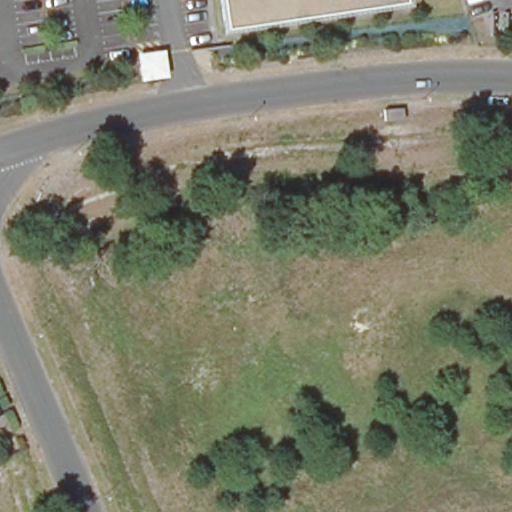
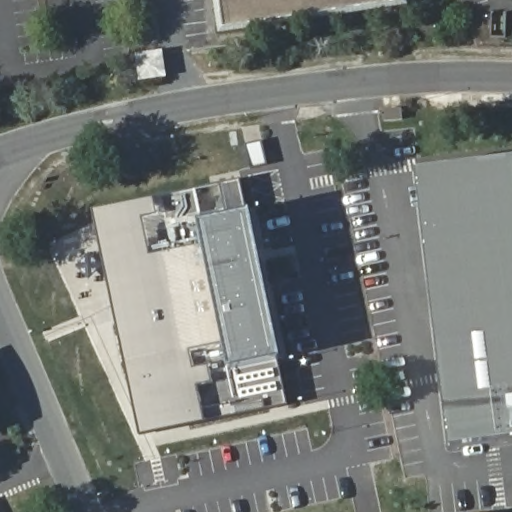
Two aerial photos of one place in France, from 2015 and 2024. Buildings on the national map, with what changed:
unchanged [(220,27),(216,0),(399,0),(400,1),(220,27)]
unchanged [(166,49),(170,78),(141,83),(137,54),(166,49)]
new [(419,170),(512,158),(512,438),(453,445),(419,170)]
new [(220,183),(242,178),(249,211),(254,210),(285,358),(280,359),(290,404),(207,422),(141,436),(93,210),(156,197),(197,188),(203,221),(227,216),(220,183)]

